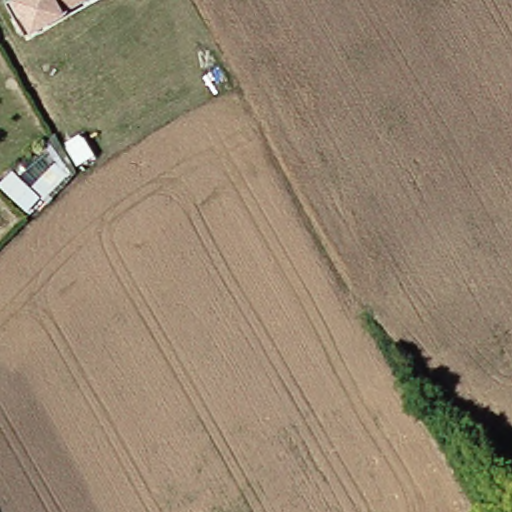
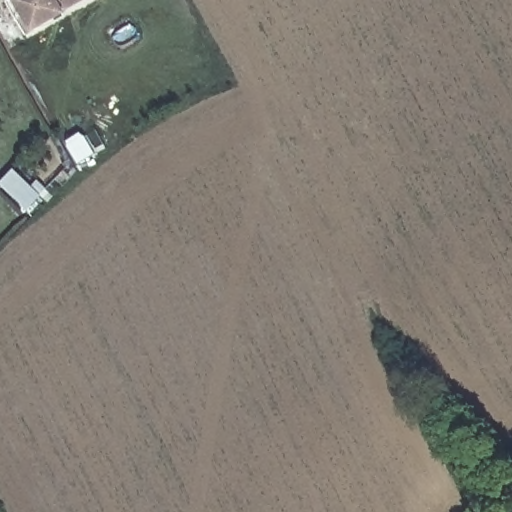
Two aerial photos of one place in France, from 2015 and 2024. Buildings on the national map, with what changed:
unchanged [(31,30),(15,0),(59,0),(65,11),(31,30)]

